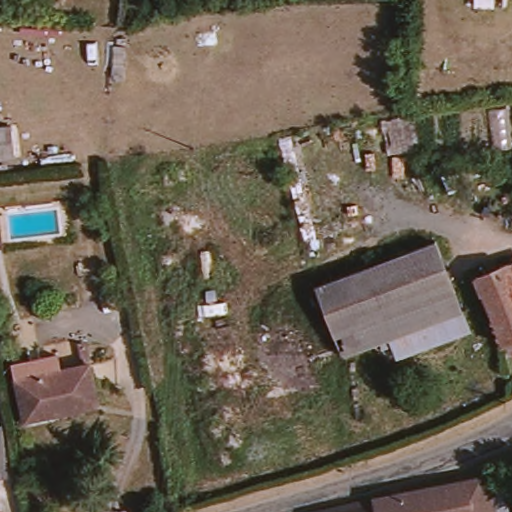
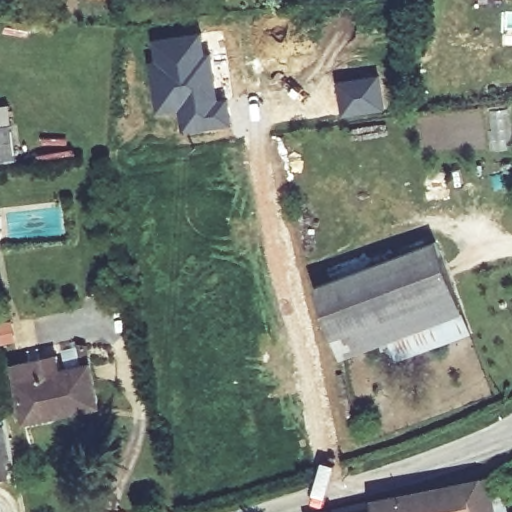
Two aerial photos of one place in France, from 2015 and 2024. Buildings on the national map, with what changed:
new [(155,58),(152,38),(202,30),(220,99),(228,97),(232,124),(184,131),(179,109),(158,111),(150,59),(155,58)]
new [(380,73),(385,110),(342,116),(336,80),(380,73)]
new [(9,125),(14,155),(0,157),(0,127),(9,125)]
unchanged [(4,217),(7,248),(0,249),(0,217),(4,217)]
unchanged [(345,364),(314,297),(434,243),(464,310),(345,364)]
demolished [(479,280),(512,265),(512,341),(505,344),(479,280)]
unchanged [(87,367),(96,411),(22,426),(12,381),(87,367)]
unchanged [(2,436),(10,476),(0,479),(0,426),(2,436)]
unchanged [(310,509),(472,482),(493,479),(499,512),(310,512),(310,509)]

